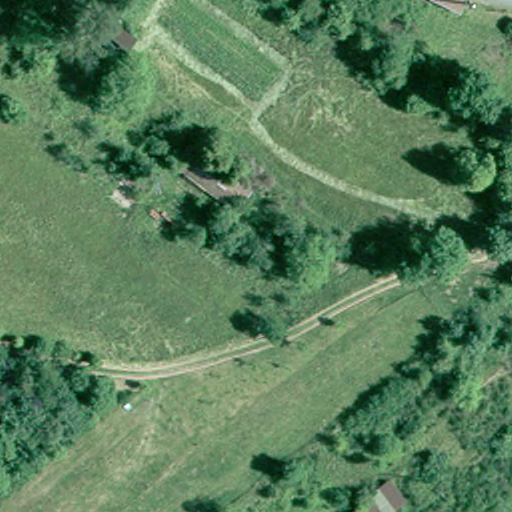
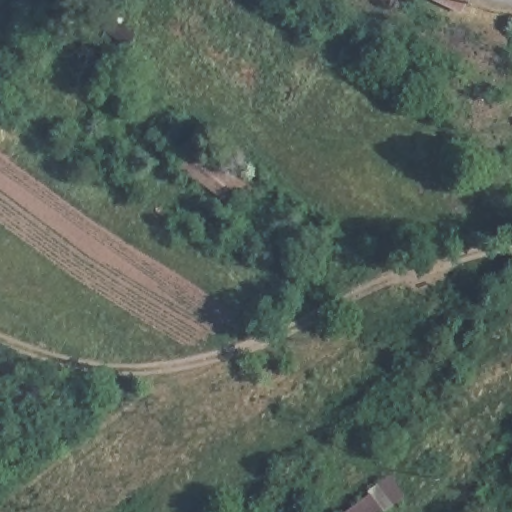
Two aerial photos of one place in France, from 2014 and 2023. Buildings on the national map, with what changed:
unchanged [(453,0),(455,0),(455,1),(453,0)]
unchanged [(196,139),(257,176),(237,206),(180,165),(196,139)]
unchanged [(404,505),(394,512),(334,512),(383,486),(404,505)]

